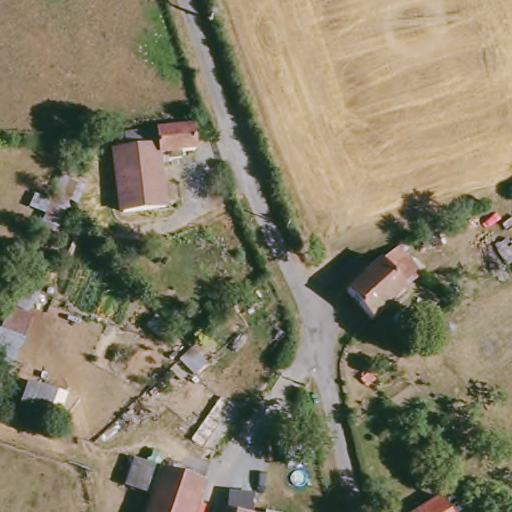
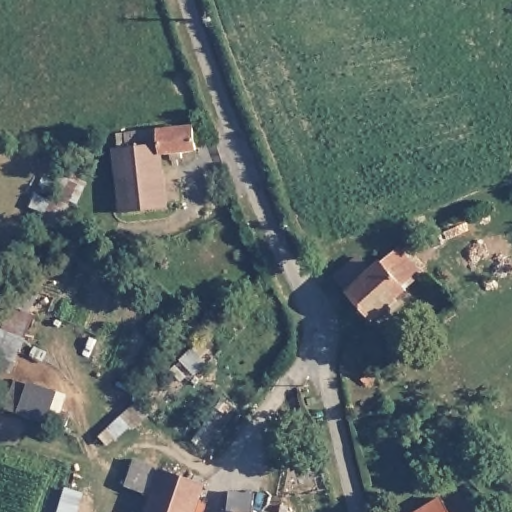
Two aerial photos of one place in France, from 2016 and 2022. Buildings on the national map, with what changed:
unchanged [(120,186),(115,153),(160,146),(159,138),(158,132),(193,126),(197,150),(163,155),(161,156),(170,210),(128,217),(123,186),(120,186)]
unchanged [(379,320),(351,288),(340,275),(361,254),(373,270),(396,247),(425,274),(379,320)]
unchanged [(194,512),(146,512),(167,461),(206,475),(197,503),(194,512)]
unchanged [(453,512),(417,512),(440,495),(453,512)]
unchanged [(233,512),(235,507),(246,512),(233,512)]

